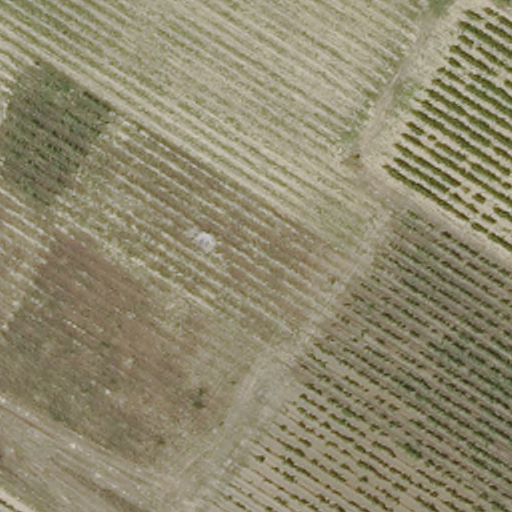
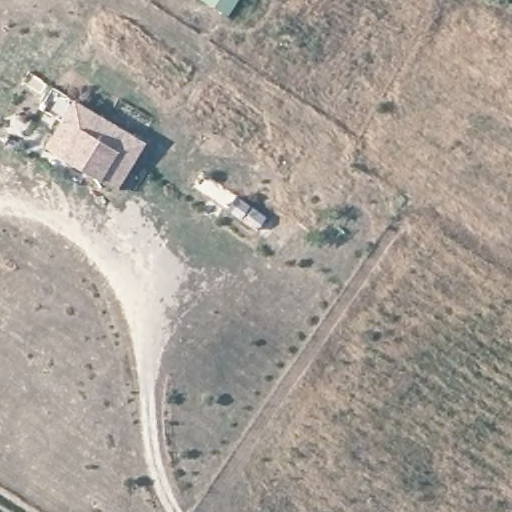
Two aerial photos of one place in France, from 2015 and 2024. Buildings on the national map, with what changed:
new [(207,0),(232,0),(226,11),(207,0)]
new [(146,143),(116,190),(44,149),(72,100),(146,143)]
new [(307,165),(322,174),(293,220),(278,211),(307,165)]
new [(249,204),(241,217),(228,210),(235,196),(249,204)]
new [(265,214),(257,227),(245,220),(252,207),(265,214)]

